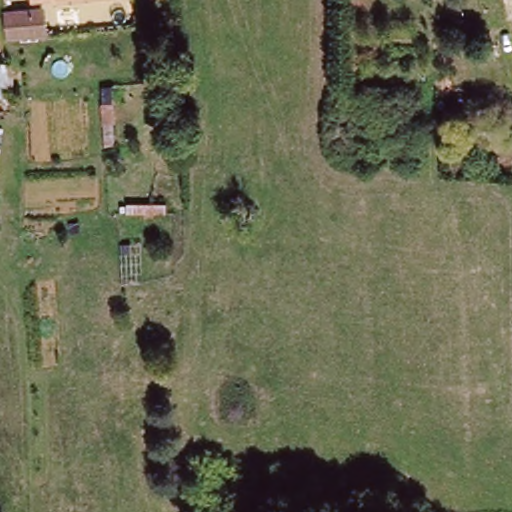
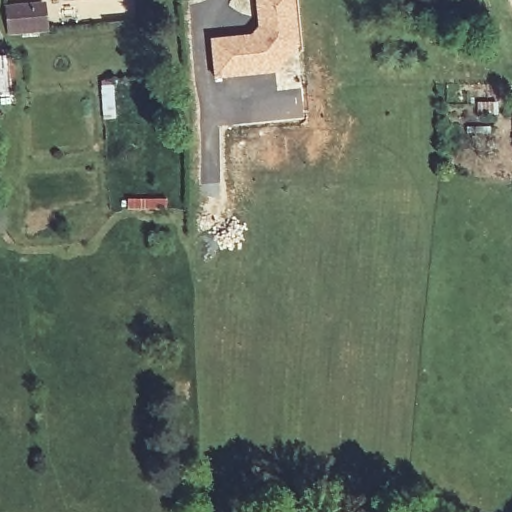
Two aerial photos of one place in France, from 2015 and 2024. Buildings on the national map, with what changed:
new [(300,47),(280,72),(215,79),(211,40),(251,35),(259,26),(256,0),(295,0),(300,47)]
unchanged [(12,13),(42,11),(51,10),(52,31),(44,32),(15,35),(12,13)]
unchanged [(19,94),(0,94),(0,58),(17,56),(19,94)]

